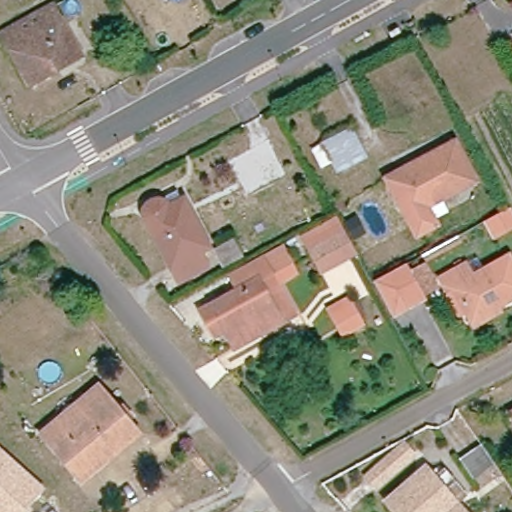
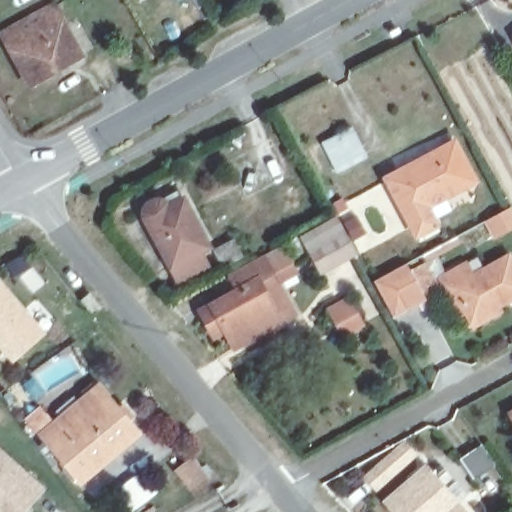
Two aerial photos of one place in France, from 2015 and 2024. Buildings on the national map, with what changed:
unchanged [(56,7),(80,60),(24,84),(1,32),(56,7)]
unchanged [(318,142),(350,124),(367,160),(337,177),(318,142)]
unchanged [(448,145),(469,182),(423,208),(433,225),(426,229),(413,236),(383,180),(396,173),(448,145)]
unchanged [(507,208),(512,218),(512,226),(491,237),(482,221),(507,208)]
unchanged [(142,224),(143,220),(147,215),(151,213),(155,213),(160,215),(164,218),(165,219),(178,211),(204,256),(196,261),(202,273),(177,288),(142,231),(142,227),(142,224)]
unchanged [(355,251),(317,270),(306,247),(343,227),(355,251)]
unchanged [(444,290),(436,275),(453,265),(462,260),(470,273),(504,256),(512,271),(512,291),(490,303),(495,311),(482,318),(470,325),(465,316),(449,287),(444,290)]
unchanged [(261,257),(292,316),(277,323),(257,284),(237,294),(227,275),(258,258),(261,257)]
unchanged [(223,258),(229,268),(212,276),(207,267),(223,258)]
unchanged [(422,299),(390,317),(372,282),(403,265),(422,299)]
new [(47,333),(12,363),(0,349),(0,278),(47,333)]
unchanged [(277,323),(233,346),(225,330),(210,338),(197,315),(237,294),(257,284),(277,323)]
unchanged [(367,322),(348,332),(337,311),(356,301),(367,322)]
unchanged [(99,389),(136,432),(79,479),(44,437),(99,389)]
unchanged [(512,413),(512,420),(509,415),(512,413)]
unchanged [(406,437),(417,448),(377,483),(367,472),(406,437)]
unchanged [(482,444),(496,464),(475,477),(462,458),(482,444)]
unchanged [(30,505),(32,508),(29,512),(0,512),(0,447),(47,488),(30,505)]
unchanged [(425,465),(429,470),(439,461),(446,468),(454,478),(466,491),(456,500),(466,512),(399,512),(387,498),(425,465)]
demolished [(179,512),(143,512),(167,495),(179,512)]

